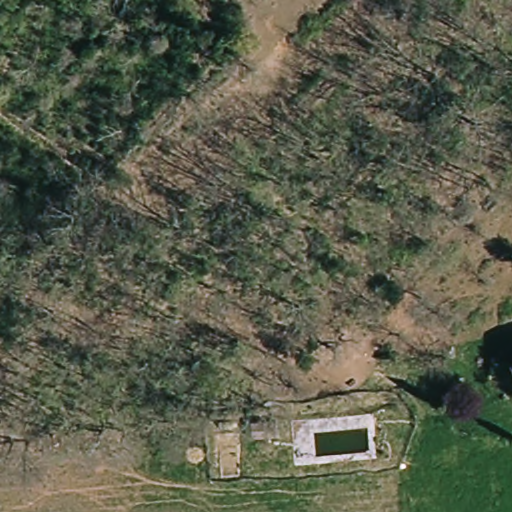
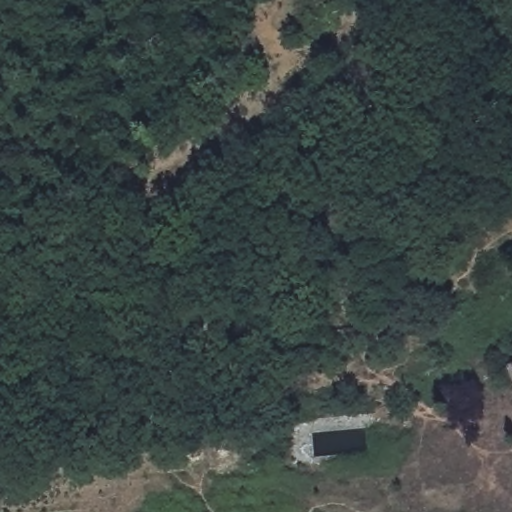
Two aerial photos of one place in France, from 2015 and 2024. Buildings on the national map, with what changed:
unchanged [(512,377),(512,381),(511,378),(512,377)]

